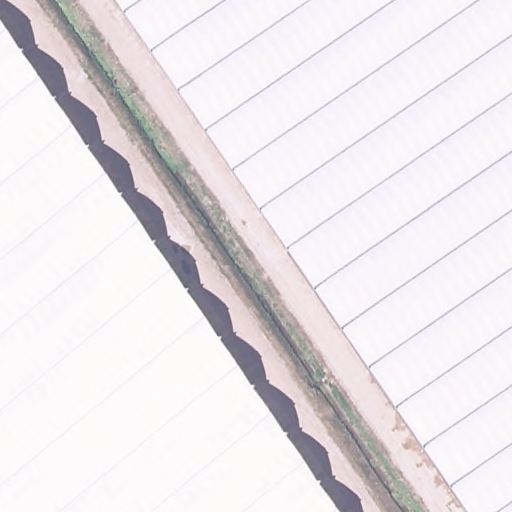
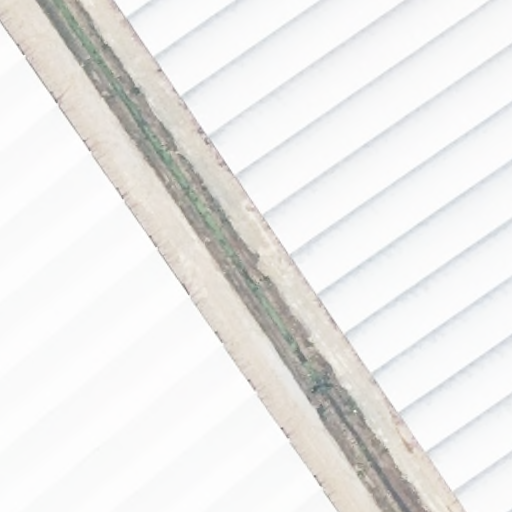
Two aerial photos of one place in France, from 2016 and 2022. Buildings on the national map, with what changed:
unchanged [(115,0),(512,0),(512,95),(287,251),(115,0)]
unchanged [(0,20),(340,512),(0,512),(0,20)]
unchanged [(512,95),(512,512),(465,512),(287,251),(512,95)]

